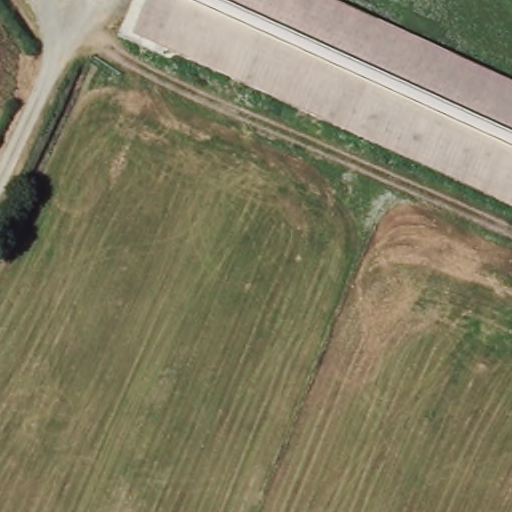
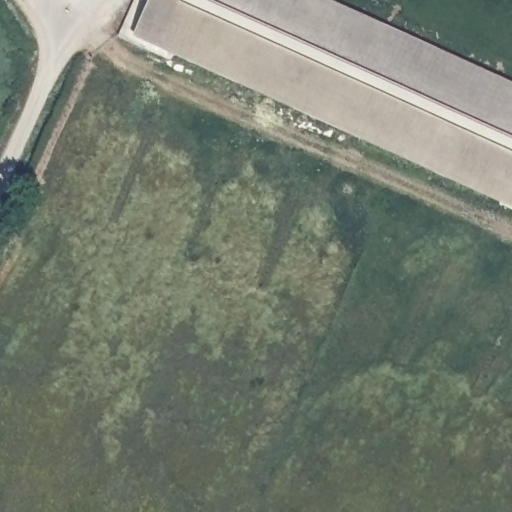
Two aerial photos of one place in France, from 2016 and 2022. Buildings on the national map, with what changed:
unchanged [(128,36),(145,0),(327,0),(512,84),(512,209),(128,36)]

